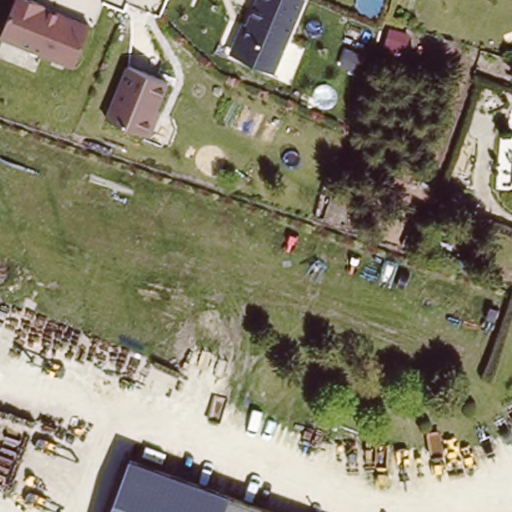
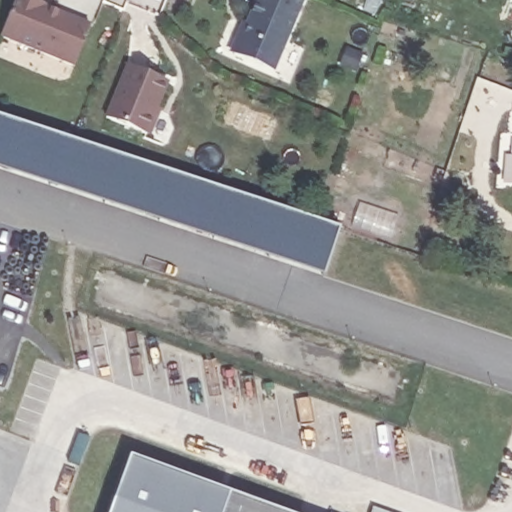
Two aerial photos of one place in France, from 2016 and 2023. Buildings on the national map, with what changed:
unchanged [(92,26),(74,70),(0,41),(0,39),(15,0),(26,0),(92,26)]
unchanged [(243,21),(247,22),(256,0),(305,0),(275,74),(231,55),(243,21)]
unchanged [(126,66),(170,82),(151,137),(106,120),(126,66)]
new [(323,278),(0,171),(0,117),(338,228),(323,278)]
unchanged [(226,512),(115,512),(131,463),(231,498),(226,512)]
unchanged [(269,512),(226,512),(231,498),(269,512)]

